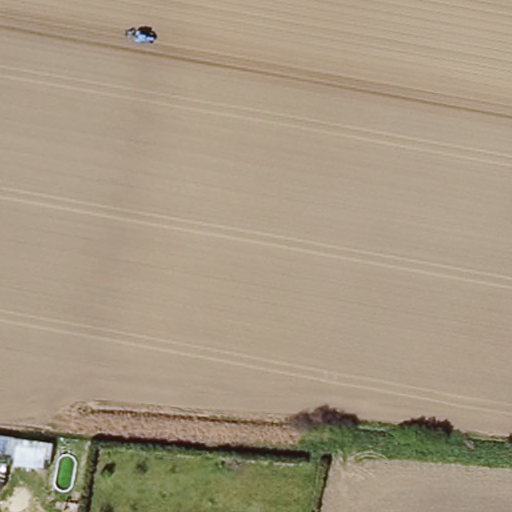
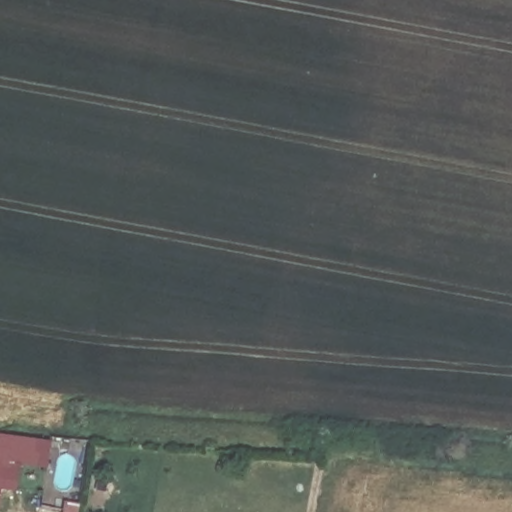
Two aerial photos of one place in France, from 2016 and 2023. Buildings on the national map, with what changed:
new [(21,465),(17,491),(0,488),(0,434),(51,441),(48,469),(21,465)]

